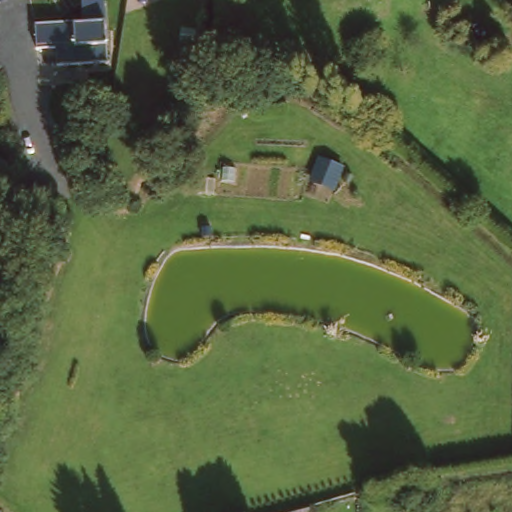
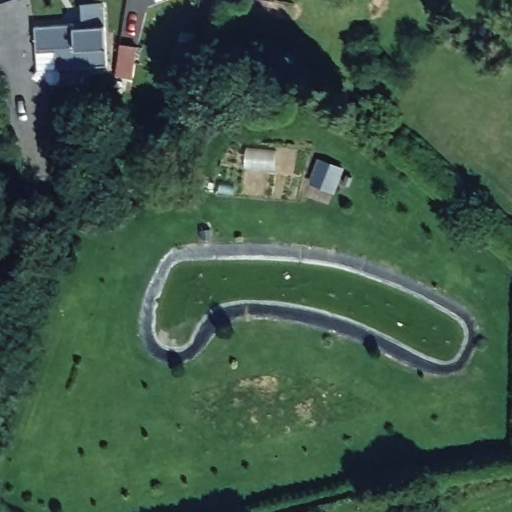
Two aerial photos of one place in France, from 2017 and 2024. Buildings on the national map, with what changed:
unchanged [(56,50),(37,50),(35,25),(83,22),(82,5),(105,4),(108,65),(57,67),(56,50)]
unchanged [(313,185),(315,183),(323,161),(345,170),(336,191),(335,194),(313,185)]
unchanged [(350,177),(355,179),(352,187),(347,185),(350,177)]
unchanged [(204,231),(213,230),(213,240),(205,241),(204,231)]
unchanged [(312,510),(312,512),(305,512),(312,510)]

